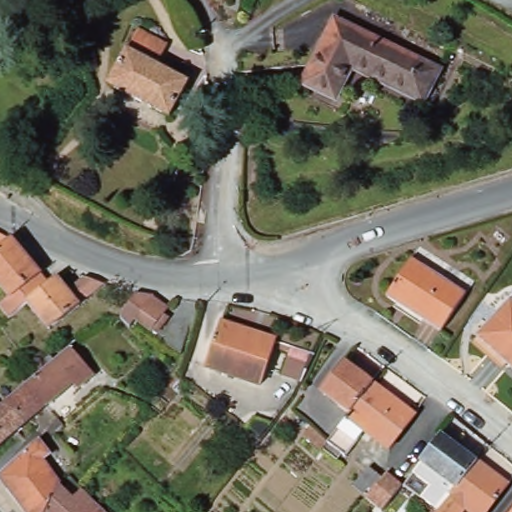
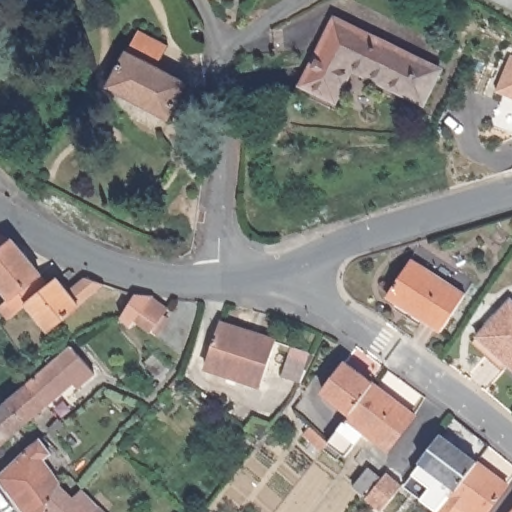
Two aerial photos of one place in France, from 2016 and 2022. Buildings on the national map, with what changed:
unchanged [(441,76),(424,107),(353,72),(336,102),(303,85),(336,22),(441,76)]
unchanged [(107,90),(137,34),(167,49),(155,70),(187,87),(168,121),(107,90)]
new [(509,55),(512,55),(512,98),(495,91),(509,55)]
unchanged [(11,241),(10,242),(9,244),(8,244),(0,251),(0,236),(11,241)]
unchanged [(8,244),(9,244),(10,242),(48,287),(26,306),(19,311),(18,312),(0,289),(0,251),(8,244)]
unchanged [(470,292),(439,340),(386,306),(417,258),(470,292)]
unchanged [(48,287),(57,280),(67,292),(85,278),(105,285),(49,331),(26,306),(48,287)]
unchanged [(160,335),(156,330),(153,334),(139,322),(133,329),(123,320),(142,296),(159,297),(157,299),(171,310),(167,316),(172,320),(160,335)]
unchanged [(512,368),(477,337),(510,301),(512,303),(512,368)]
unchanged [(262,387),(239,380),(243,368),(214,358),(225,324),(279,342),(262,387)]
unchanged [(288,377),(294,357),(288,355),(291,346),(317,356),(305,383),(288,377)]
unchanged [(2,409),(9,404),(31,384),(41,375),(73,347),(98,375),(81,390),(76,385),(50,407),(28,426),(0,451),(0,406),(2,409)]
unchanged [(166,381),(148,363),(158,353),(175,371),(166,381)]
unchanged [(326,390),(349,360),(375,380),(353,410),(326,390)]
unchanged [(183,393),(174,385),(181,376),(190,383),(183,393)]
unchanged [(329,442),(327,444),(308,428),(314,420),(334,435),(353,410),(375,380),(418,413),(393,446),(368,428),(353,449),(351,450),(346,445),(343,450),(342,451),(329,442)]
unchanged [(67,427),(57,435),(52,430),(62,421),(67,427)]
unchanged [(424,458),(444,432),(481,460),(460,486),(459,485),(424,458)]
unchanged [(0,478),(0,476),(24,452),(39,440),(50,453),(44,458),(61,478),(44,510),(43,512),(26,512),(0,478)]
unchanged [(414,503),(422,492),(434,503),(441,509),(452,495),(459,485),(460,486),(481,460),(510,483),(489,512),(476,512),(469,506),(464,512),(424,512),(414,503)]
unchanged [(371,500),(358,488),(375,469),(389,478),(371,500)]
unchanged [(44,510),(61,478),(64,475),(67,471),(81,486),(107,512),(46,512),(44,510)]

